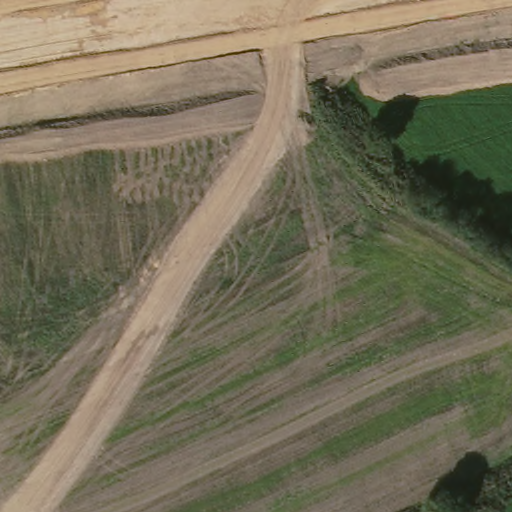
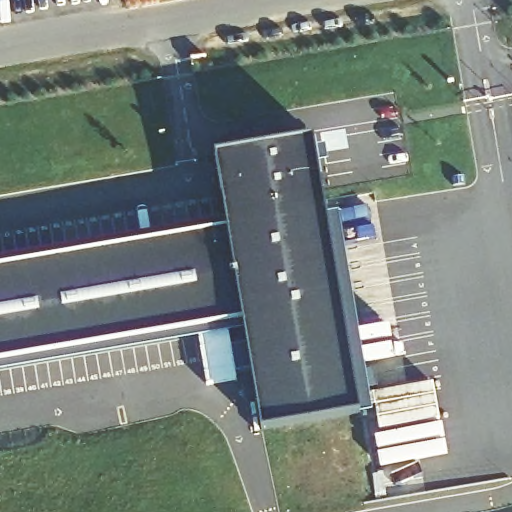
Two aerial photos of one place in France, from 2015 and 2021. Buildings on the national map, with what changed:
new [(260,428),(243,320),(0,361),(0,267),(227,229),(215,156),(313,140),(359,413),(260,428)]

